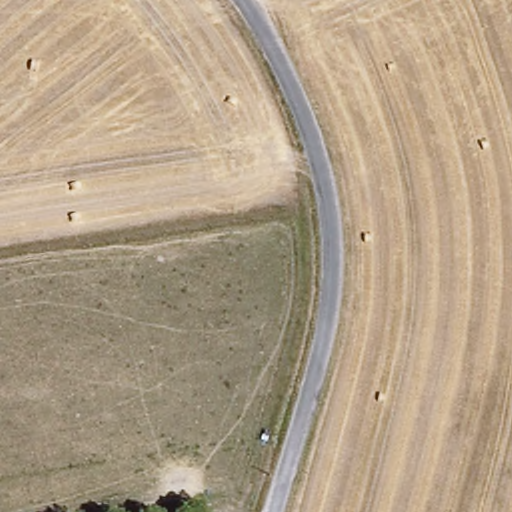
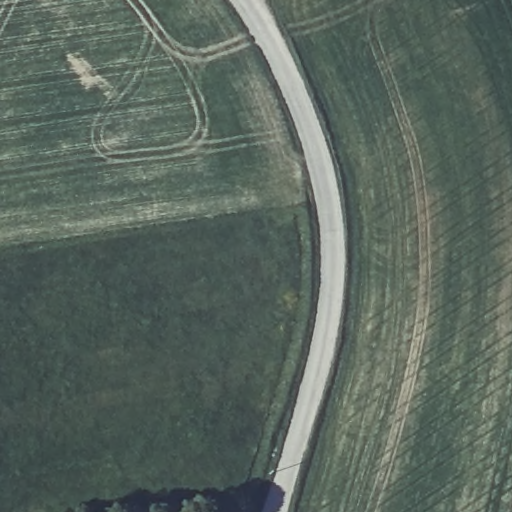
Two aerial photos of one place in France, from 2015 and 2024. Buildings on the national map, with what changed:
[]

